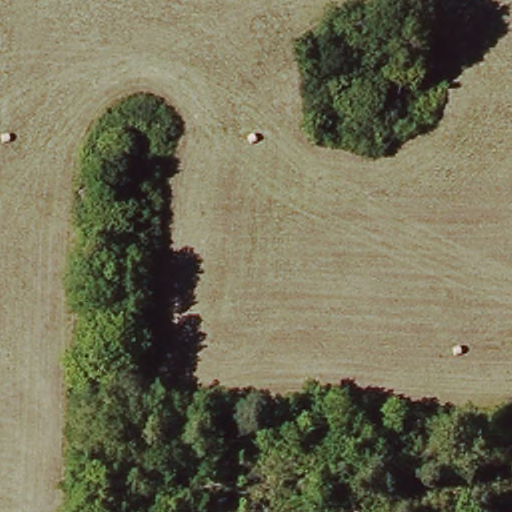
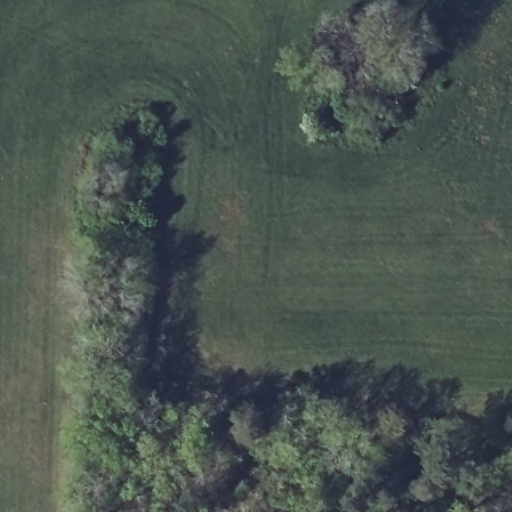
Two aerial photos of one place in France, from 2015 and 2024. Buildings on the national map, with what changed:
unchanged [(355,56),(411,61),(407,104),(352,100),(355,56)]

